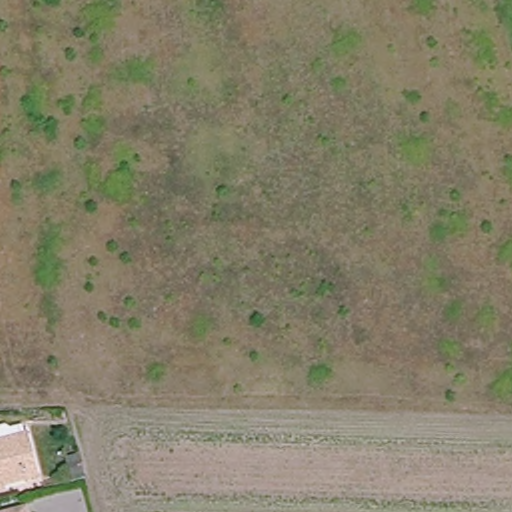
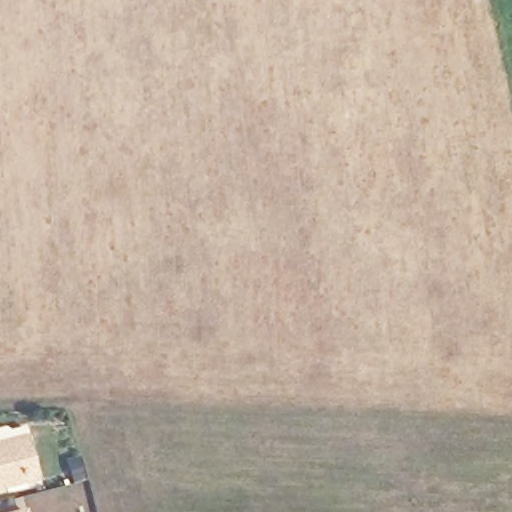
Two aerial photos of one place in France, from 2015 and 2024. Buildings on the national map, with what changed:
unchanged [(28,449),(40,486),(33,488),(0,499),(0,458),(21,450),(28,449)]

